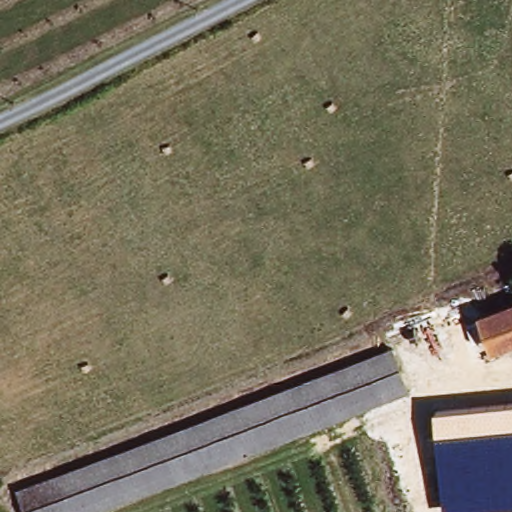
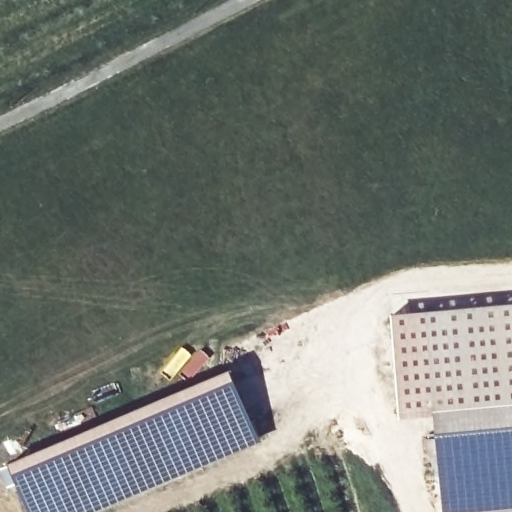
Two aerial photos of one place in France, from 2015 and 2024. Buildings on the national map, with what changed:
new [(512,304),(512,511),(497,512),(444,512),(425,312),(512,304)]
demolished [(482,316),(512,305),(512,342),(495,348),(482,316)]
demolished [(392,352),(410,395),(95,512),(25,512),(17,492),(392,352)]
new [(225,370),(256,443),(97,512),(23,512),(3,466),(225,370)]
demolished [(430,422),(481,417),(485,447),(505,445),(504,412),(512,411),(512,489),(440,500),(430,422)]

